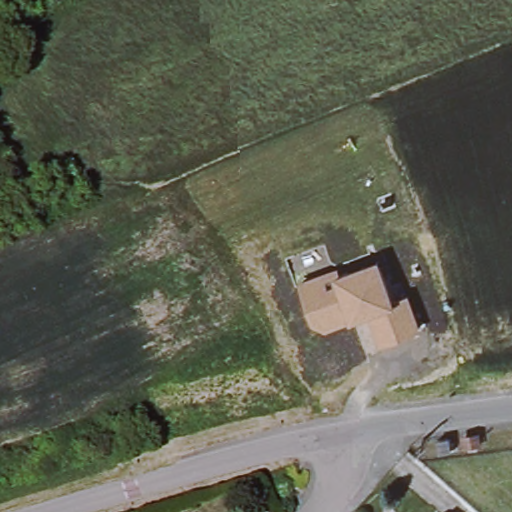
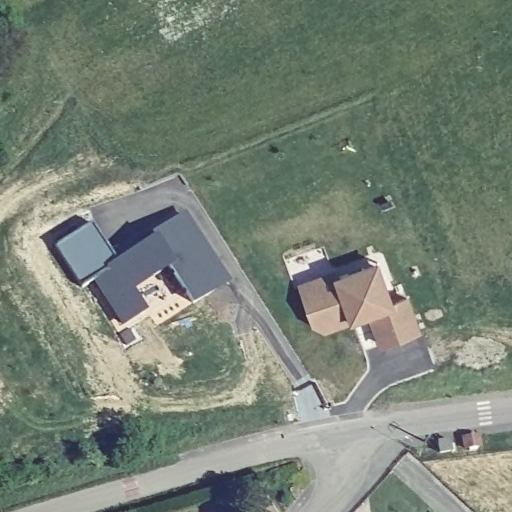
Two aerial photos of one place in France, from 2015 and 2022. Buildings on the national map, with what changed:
new [(230,283),(227,285),(239,305),(205,298),(190,307),(167,270),(134,290),(147,311),(121,327),(92,281),(81,287),(55,245),(91,222),(115,260),(155,236),(152,232),(185,212),(230,283)]
unchanged [(379,349),(369,318),(350,324),(322,333),(310,322),(299,285),(340,273),(342,276),(382,263),(395,304),(411,298),(422,333),(379,349)]

